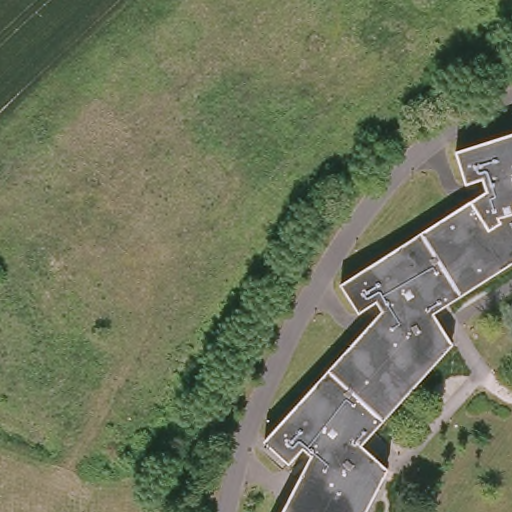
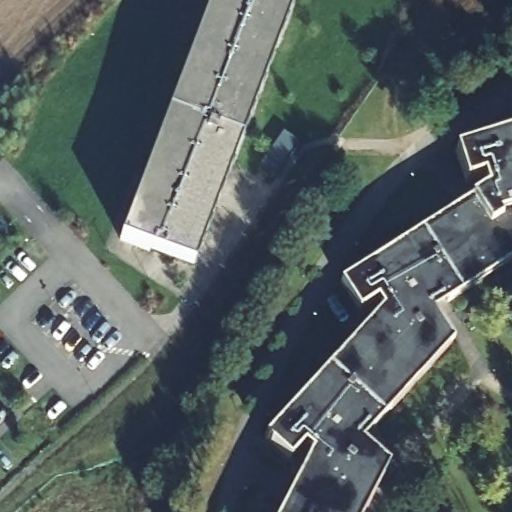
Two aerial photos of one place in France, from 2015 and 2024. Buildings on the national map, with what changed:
new [(115,236),(207,0),(288,0),(192,256),(115,236)]
new [(284,132),(300,144),(277,178),(260,167),(284,132)]
unchanged [(379,423),(356,448),(383,472),(363,512),(279,512),(302,467),(292,459),(284,467),(270,468),(252,452),(370,322),(367,318),(363,311),(360,313),(353,317),(344,302),(335,288),(383,257),(480,195),(475,182),(460,187),(450,155),(512,135),(512,263),(428,317),(447,347),(379,423)]

